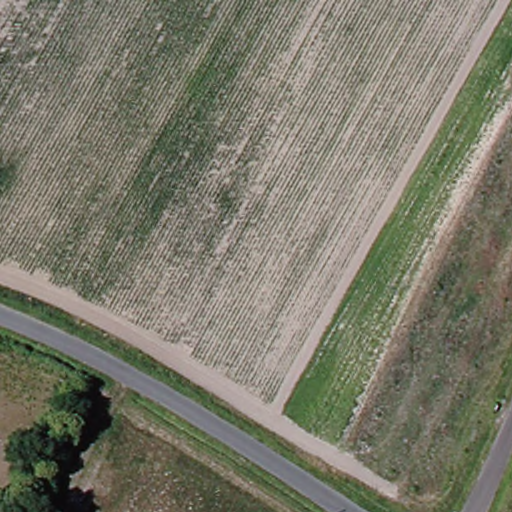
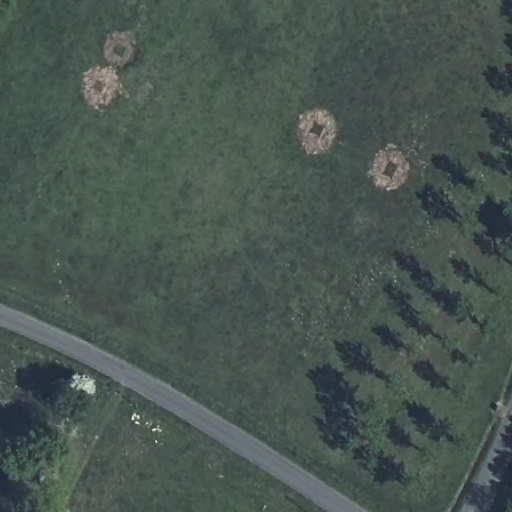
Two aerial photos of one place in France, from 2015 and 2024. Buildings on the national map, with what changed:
[]

